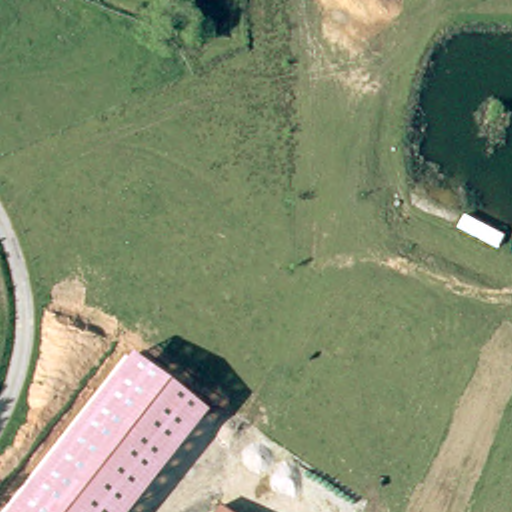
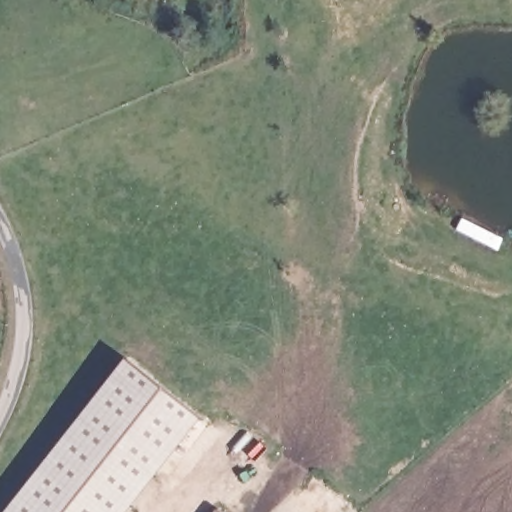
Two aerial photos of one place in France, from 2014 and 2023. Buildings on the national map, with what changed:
unchanged [(130,360),(205,420),(131,512),(9,512),(130,360)]

